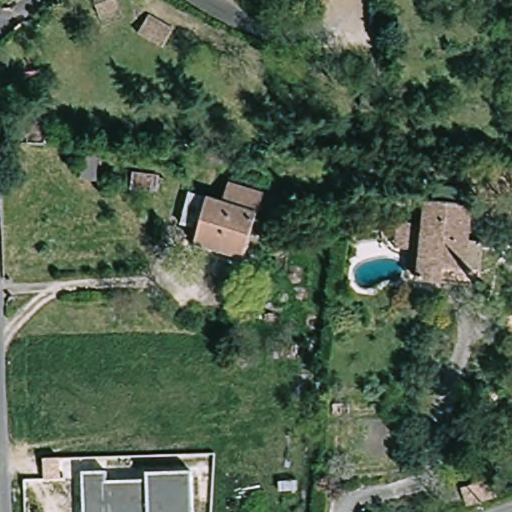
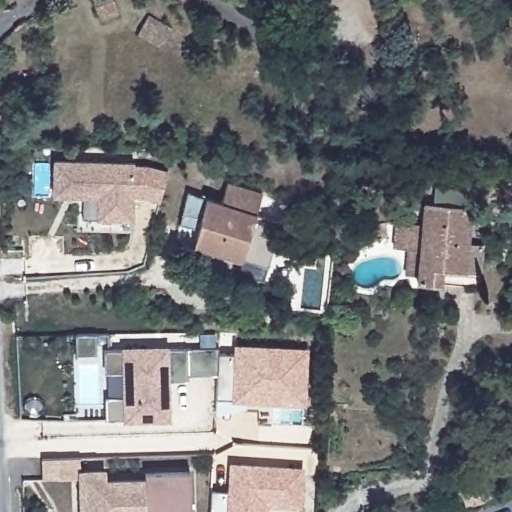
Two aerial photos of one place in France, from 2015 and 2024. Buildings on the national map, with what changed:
unchanged [(114,0),(117,10),(98,15),(93,0),(114,0)]
unchanged [(137,35),(148,16),(172,30),(161,49),(137,35)]
unchanged [(363,97),(385,100),(382,112),(362,110),(363,97)]
demolished [(96,180),(80,179),(80,145),(97,146),(96,180)]
new [(135,161),(135,165),(148,165),(168,170),(160,201),(134,195),(132,220),(96,219),(96,197),(52,196),(52,159),(135,161)]
unchanged [(242,260),(193,245),(198,230),(180,224),(187,193),(206,199),(221,204),(227,183),(262,195),(242,260)]
unchanged [(445,283),(422,280),(422,275),(410,274),(413,250),(398,249),(401,223),(427,225),(430,204),(438,205),(440,189),(467,191),(465,207),(475,209),(472,242),(487,244),(485,271),(483,286),(445,283)]
new [(95,354),(74,354),(73,349),(73,334),(80,334),(95,334),(95,354)]
new [(235,345),(310,347),(305,405),(246,402),(246,407),(216,414),(217,373),(218,355),(234,354),(235,345)]
new [(103,372),(103,348),(108,348),(188,347),(219,346),(217,373),(188,374),(188,379),(167,380),(168,417),(109,418),(104,418),(103,395),(125,395),(125,371),(103,372)]
new [(80,457),(80,477),(58,478),(57,457),(80,457)]
new [(305,467),(301,506),(269,505),(269,512),(212,512),(213,490),(228,491),(230,462),(305,467)]
unchanged [(81,502),(81,495),(80,472),(105,471),(105,481),(145,480),(145,473),(190,472),(191,512),(81,512),(81,502)]
unchanged [(467,505),(462,488),(486,480),(492,497),(467,505)]

